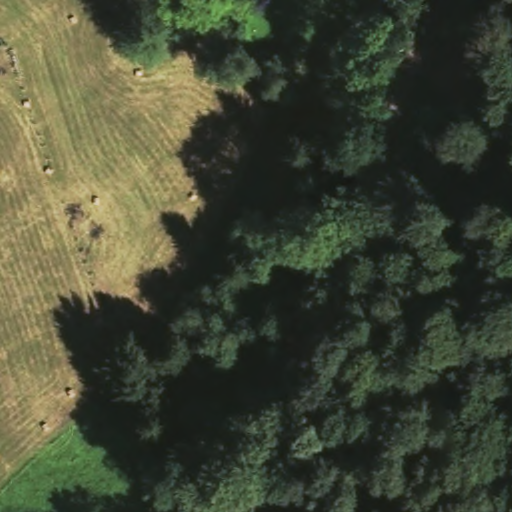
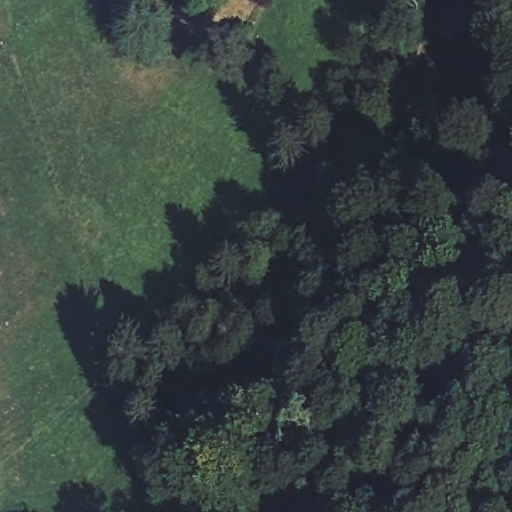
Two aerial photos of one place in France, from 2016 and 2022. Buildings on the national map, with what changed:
[]

